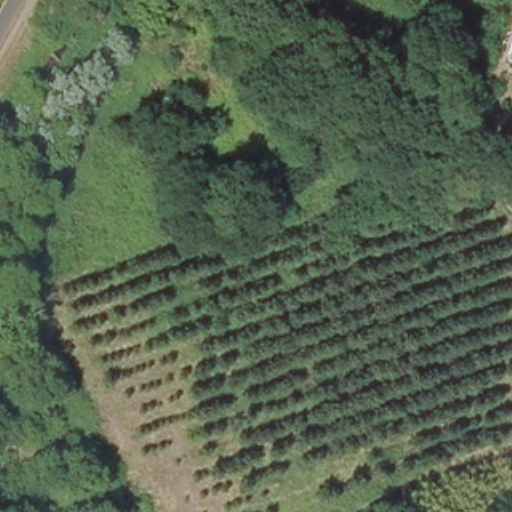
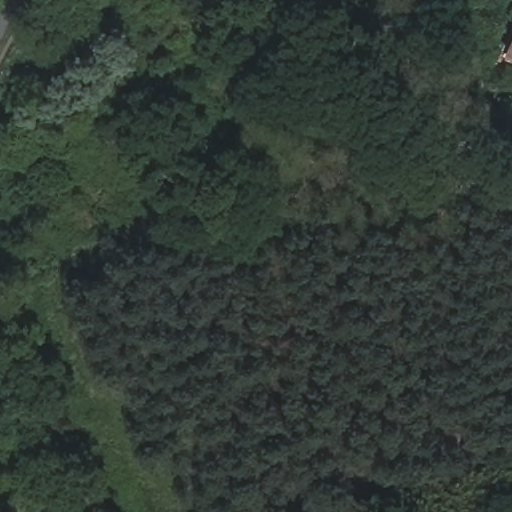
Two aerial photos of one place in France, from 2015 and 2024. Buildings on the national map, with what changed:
unchanged [(512,33),(512,51),(505,48),(512,33)]

